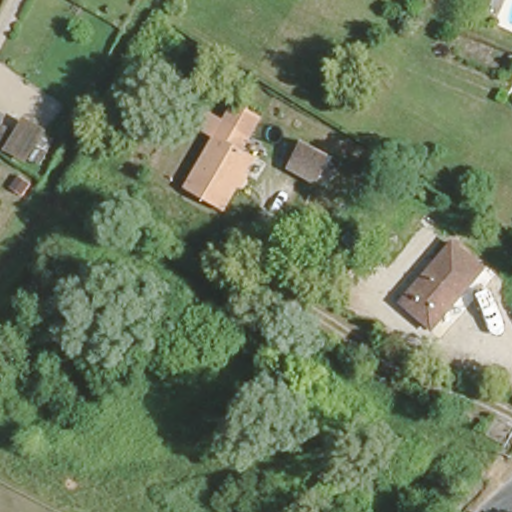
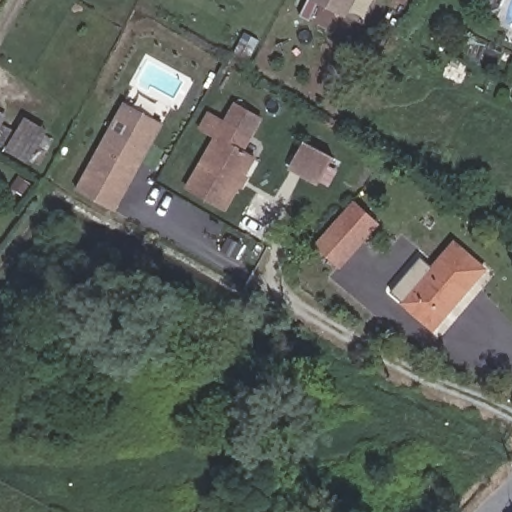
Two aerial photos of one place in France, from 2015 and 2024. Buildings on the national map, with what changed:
new [(311,0),(354,0),(345,18),(311,0)]
unchanged [(224,118),(236,96),(265,113),(254,135),(245,149),(255,155),(223,212),(182,189),(224,118)]
new [(164,124),(115,212),(75,190),(124,102),(164,124)]
unchanged [(10,115),(4,126),(0,132),(0,108),(10,115)]
unchanged [(4,126),(14,132),(25,117),(47,131),(37,148),(47,153),(37,168),(27,162),(6,152),(0,147),(0,132),(4,126)]
unchanged [(285,161),(301,133),(329,150),(313,177),(285,161)]
new [(340,268),(313,244),(354,200),(380,224),(340,268)]
unchanged [(489,267),(430,331),(400,303),(451,236),(489,267)]

